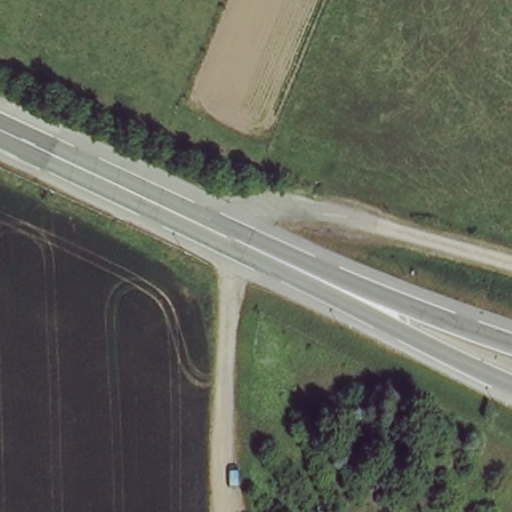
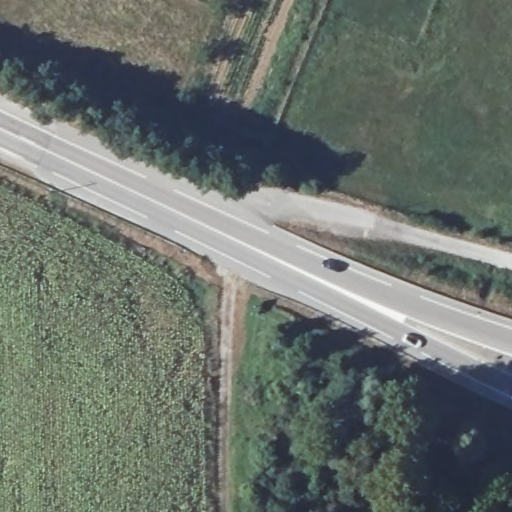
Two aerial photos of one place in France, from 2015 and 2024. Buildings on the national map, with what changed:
[]

